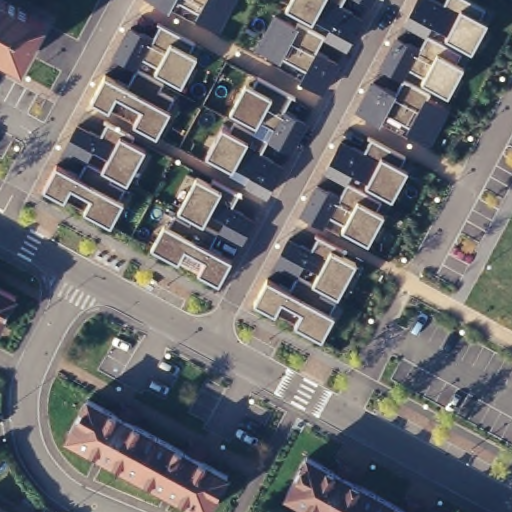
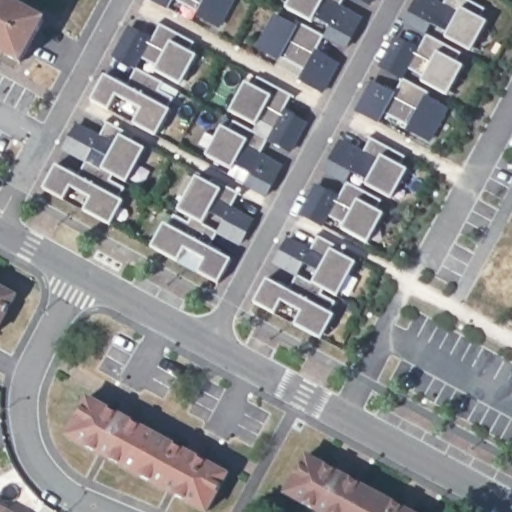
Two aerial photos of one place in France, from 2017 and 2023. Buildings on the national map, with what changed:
unchanged [(0,54),(0,0),(12,0),(48,19),(25,67),(0,54)]
unchanged [(167,8),(152,0),(171,0),(167,8)]
unchanged [(196,15),(198,12),(174,0),(232,0),(219,25),(196,15)]
unchanged [(345,48),(327,38),(331,30),(284,6),(287,0),(339,0),(337,5),(361,18),(345,48)]
unchanged [(480,20),(485,23),(470,49),(443,34),(445,31),(428,23),(423,31),(403,21),(414,0),(437,0),(444,4),(446,0),(467,0),(485,10),(480,20)]
unchanged [(325,95),(297,79),(304,68),(282,57),(280,62),(254,48),(273,8),(323,36),(316,49),(342,64),(325,95)]
unchanged [(191,53),(196,57),(181,84),(154,70),(155,65),(142,59),(137,70),(160,82),(157,87),(175,97),(157,133),(135,121),(140,111),(112,96),(106,108),(89,99),(103,70),(126,83),(134,69),(110,55),(127,22),(152,36),(159,24),(196,42),(191,53)]
unchanged [(456,64),(462,68),(447,96),(421,82),(424,76),(405,67),(398,77),(379,67),(397,35),(420,49),(427,37),(460,54),(456,64)]
unchanged [(405,129),(409,124),(387,113),(380,125),(352,111),(370,76),(397,91),(404,80),(432,95),(430,97),(450,108),(432,145),(405,129)]
unchanged [(294,154),(267,141),(262,153),(284,165),(268,198),(244,186),(250,175),(205,154),(220,125),(228,129),(233,120),(269,138),(272,130),(230,110),(244,79),(251,84),(254,77),(292,93),(283,108),(309,122),(294,154)]
unchanged [(127,182),(114,174),(110,181),(125,188),(109,223),(84,211),(91,198),(70,188),(64,199),(43,190),(55,163),(77,174),(82,163),(61,151),(74,123),(100,135),(107,121),(135,136),(132,141),(145,147),(127,182)]
unchanged [(402,166),(407,169),(393,198),(365,185),(368,181),(352,173),(347,182),(382,200),(376,211),(382,215),(369,242),(340,229),(345,221),(330,215),(323,228),(297,215),(314,183),(337,195),(343,184),(322,173),(338,137),(363,150),(370,137),(405,155),(402,166)]
unchanged [(241,246),(217,234),(211,248),(231,258),(220,282),(197,270),(202,259),(183,250),(179,260),(150,247),(163,221),(170,224),(175,213),(189,220),(191,215),(177,207),(194,173),(210,181),(212,176),(240,190),(232,206),(255,217),(241,246)]
unchanged [(337,297),(324,290),(321,296),(336,303),(322,338),(294,323),(299,313),(279,302),(273,314),(252,303),(265,277),(287,288),(292,278),(270,265),(285,234),(310,248),(317,235),(347,249),(343,255),(355,262),(337,297)]
unchanged [(0,325),(0,289),(15,297),(0,325)]
unchanged [(112,411),(119,400),(122,402),(124,406),(135,413),(131,422),(181,449),(187,437),(191,440),(192,444),(204,450),(200,459),(227,474),(207,511),(67,435),(88,398),(112,411)]
unchanged [(337,458),(340,459),(340,460),(341,462),(341,463),(354,470),(349,479),(400,506),(405,495),(407,495),(409,497),(409,498),(409,500),(422,507),(419,512),(321,512),(287,493),(307,456),(332,469),(337,458)]
unchanged [(0,512),(0,502),(18,512),(0,512)]

